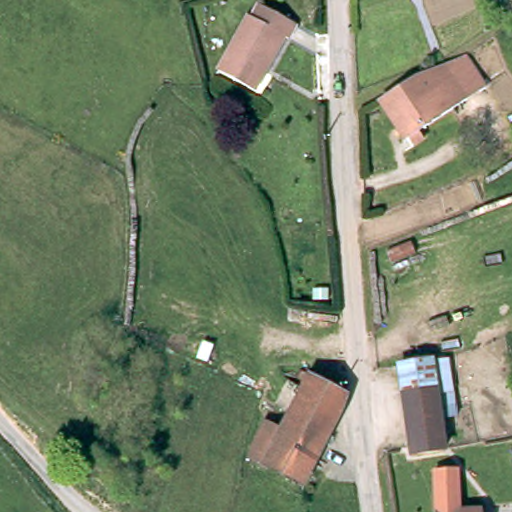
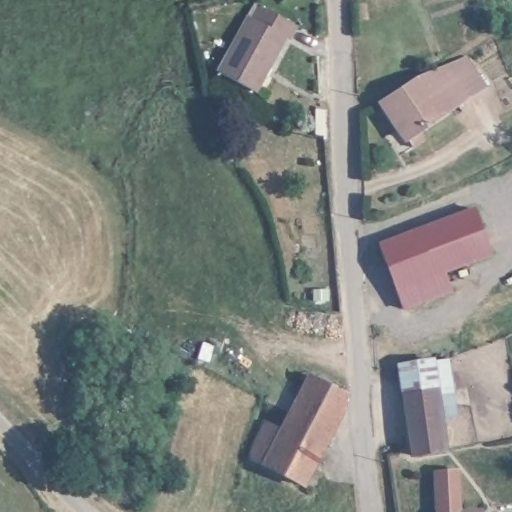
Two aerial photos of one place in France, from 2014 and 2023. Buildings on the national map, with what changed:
unchanged [(253,16),(261,2),(298,22),(291,36),(286,33),(257,87),(219,67),(249,14),(253,16)]
unchanged [(418,127),(425,137),(415,144),(383,99),(421,72),(448,61),(463,51),(484,79),(418,127)]
new [(494,255),(446,273),(454,293),(405,312),(380,245),(475,208),(494,255)]
unchanged [(398,361),(430,357),(432,361),(436,390),(446,389),(452,388),(453,403),(438,406),(444,447),(410,452),(406,423),(398,361)]
unchanged [(264,417),(280,426),(307,373),(343,392),(343,393),(339,407),(334,420),(327,432),(334,435),(329,443),(323,441),(301,483),(262,463),(245,455),(264,417)]
unchanged [(454,469),(458,511),(480,509),(480,512),(435,512),(431,472),(454,469)]

